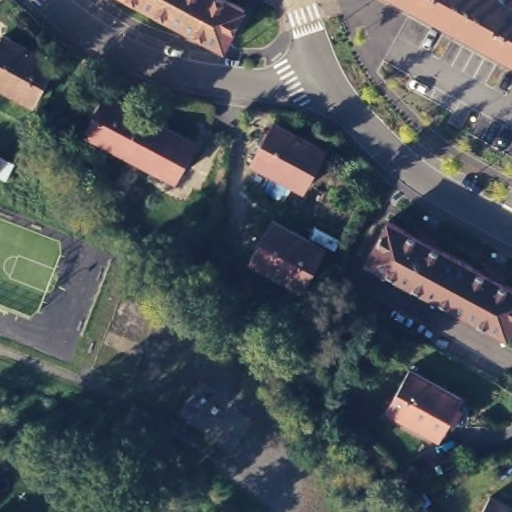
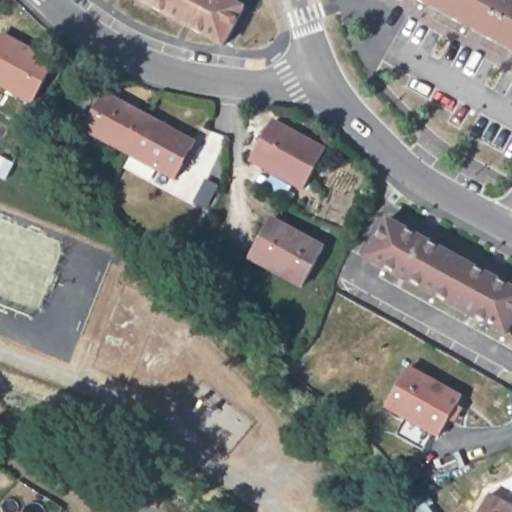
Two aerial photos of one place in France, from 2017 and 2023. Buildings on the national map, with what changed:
unchanged [(244,8),(224,45),(139,0),(228,0),(244,8)]
unchanged [(412,0),(512,0),(512,54),(412,0)]
unchanged [(55,58),(34,98),(0,80),(0,35),(3,30),(55,58)]
unchanged [(196,136),(175,176),(84,126),(106,87),(196,136)]
unchanged [(326,145),(304,184),(252,156),(274,116),(326,145)]
unchanged [(324,242),(303,281),(251,253),(272,214),(324,242)]
unchanged [(412,234),(417,225),(418,227),(420,228),(421,230),(422,232),(435,239),(432,245),(481,271),(486,263),(487,264),(489,266),(490,267),(491,269),(504,277),(501,282),(512,289),(512,325),(507,334),(368,258),(388,221),(412,234)]
unchanged [(440,431),(388,402),(410,363),(462,392),(440,431)]
unchanged [(440,460),(454,454),(458,465),(460,469),(446,474),(445,472),(440,460)]
unchanged [(426,475),(423,466),(437,462),(440,471),(426,475)]
unchanged [(512,502),(512,512),(479,512),(491,490),(512,502)]

